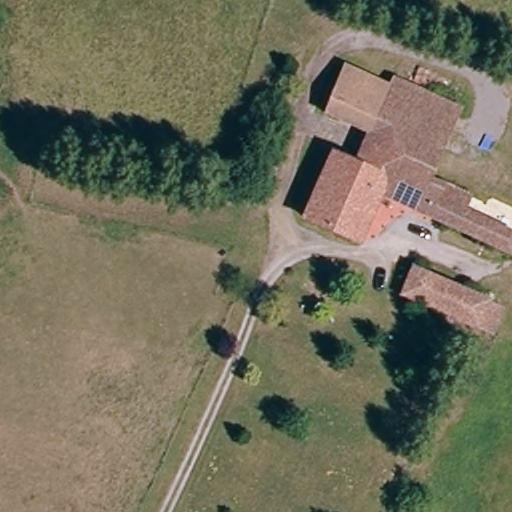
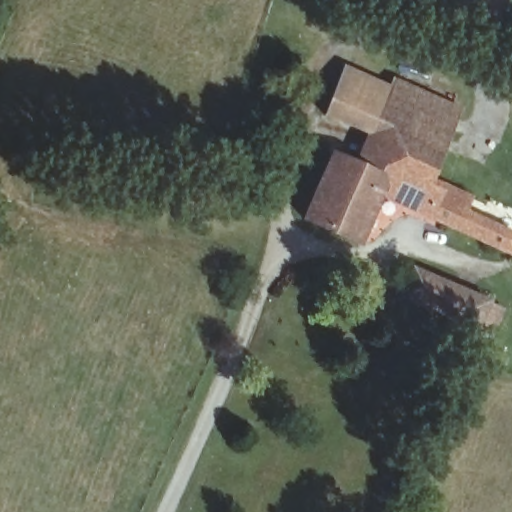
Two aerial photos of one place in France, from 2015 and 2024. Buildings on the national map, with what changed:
unchanged [(427,174),(443,180),(438,191),(512,233),(512,253),(510,256),(377,196),(357,245),(296,222),(326,149),(350,162),(363,131),(318,115),(342,61),(384,83),(387,75),(459,105),(427,174)]
unchanged [(489,336),(470,327),(398,291),(410,268),(481,304),(499,313),(489,336)]

